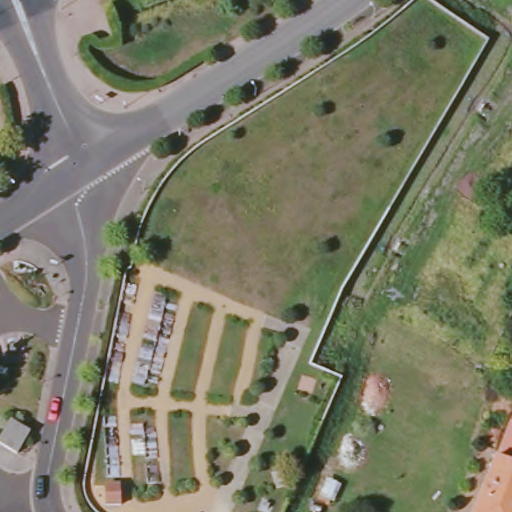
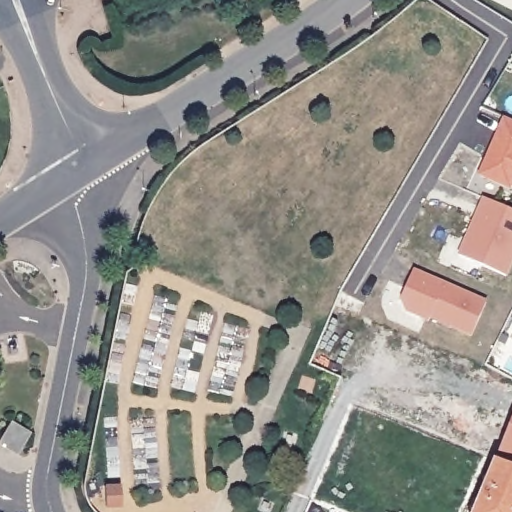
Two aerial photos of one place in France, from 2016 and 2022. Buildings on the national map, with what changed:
new [(503,117),(512,121),(512,188),(479,177),(503,117)]
new [(459,255),(483,197),(512,210),(512,269),(509,277),(459,255)]
new [(487,300),(471,337),(430,318),(429,322),(405,312),(400,301),(415,270),(487,300)]
unchanged [(477,512),(512,426),(512,512),(477,512)]

